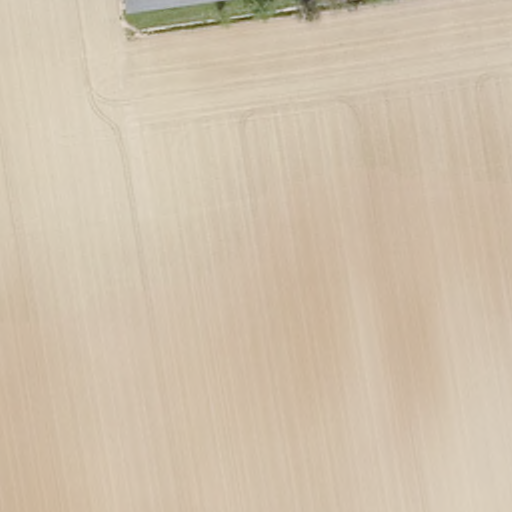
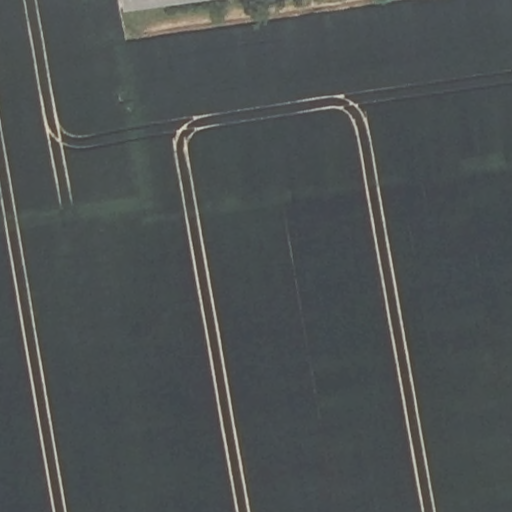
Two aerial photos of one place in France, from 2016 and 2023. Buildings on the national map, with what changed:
unchanged [(125,5),(124,0),(166,0),(125,5)]

